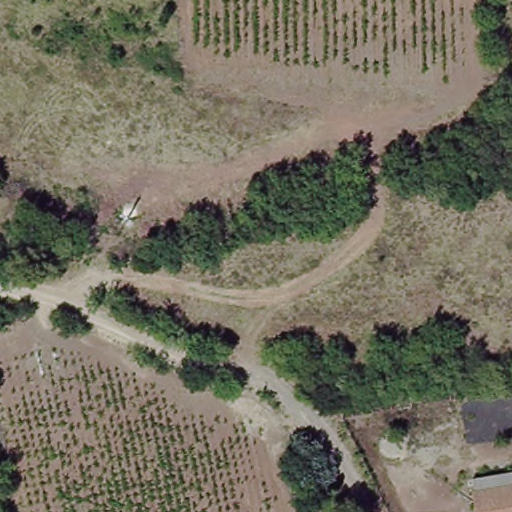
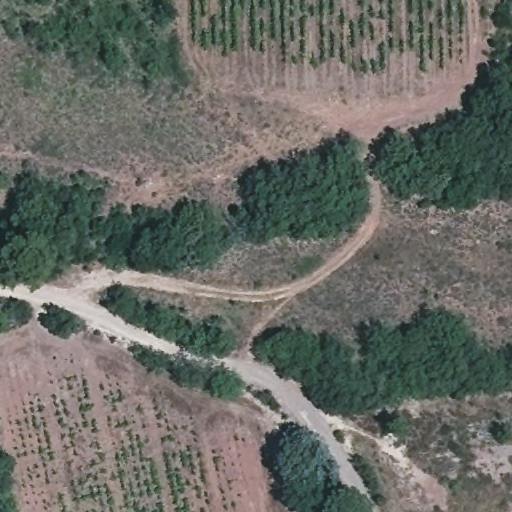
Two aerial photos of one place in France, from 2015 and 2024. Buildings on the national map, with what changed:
demolished [(512,512),(471,512),(468,494),(512,486),(512,512)]

